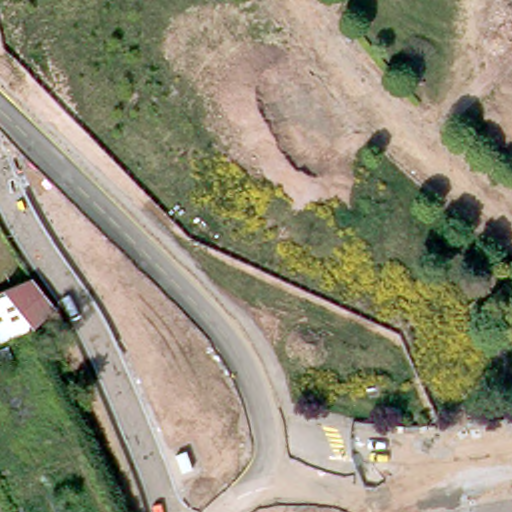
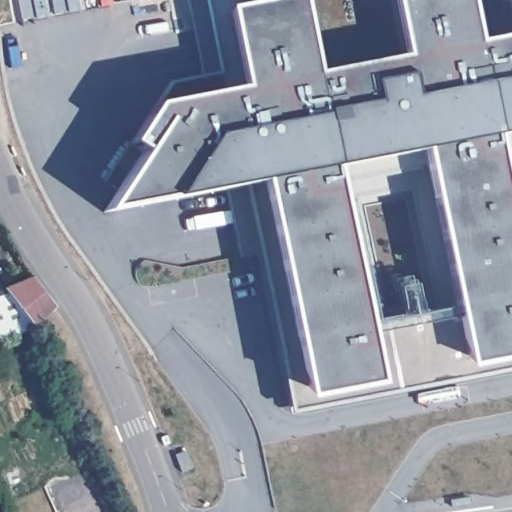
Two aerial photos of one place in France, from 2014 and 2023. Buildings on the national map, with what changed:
new [(148,152),(135,141),(160,105),(246,86),(232,10),(280,0),(304,0),(319,74),(407,56),(397,0),(471,0),(480,43),(512,37),(512,132),(498,135),(500,149),(512,210),(512,357),(469,366),(457,305),(429,166),(425,149),(337,166),(340,183),(367,323),(377,381),(308,395),(267,180),(247,184),(177,198),(110,210),(148,152)]
new [(500,149),(498,135),(512,132),(512,147),(500,149)]
new [(500,149),(512,147),(512,210),(500,149)]
new [(340,183),(337,166),(425,149),(429,166),(340,183)]
new [(422,207),(365,216),(385,319),(367,323),(340,183),(429,166),(457,305),(441,308),(422,207)]
new [(308,395),(377,381),(367,323),(385,319),(409,315),(441,308),(457,305),(469,366),(512,357),(512,370),(292,412),(247,184),(267,180),(308,395)]
unchanged [(0,343),(0,291),(0,290),(30,277),(60,318),(32,329),(0,343)]

